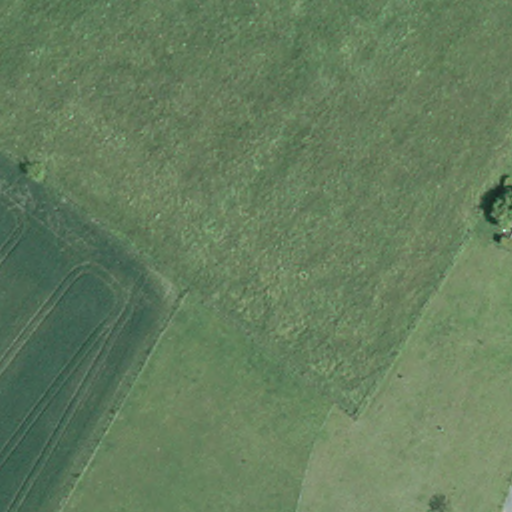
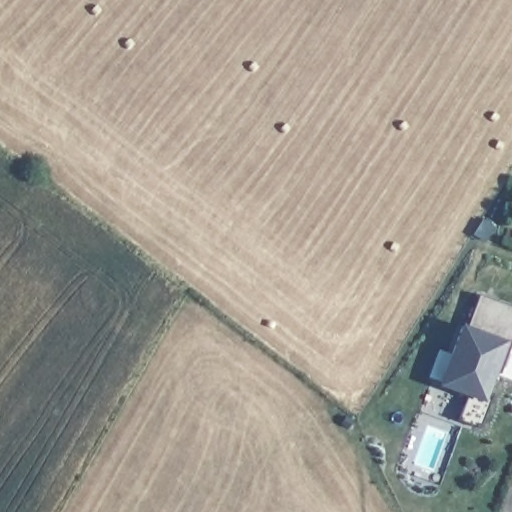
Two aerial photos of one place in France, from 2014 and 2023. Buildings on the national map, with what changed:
new [(512,306),(512,340),(500,372),(495,371),(488,390),(492,393),(482,426),(460,418),(467,396),(439,387),(459,325),(467,327),(478,294),(512,306)]

